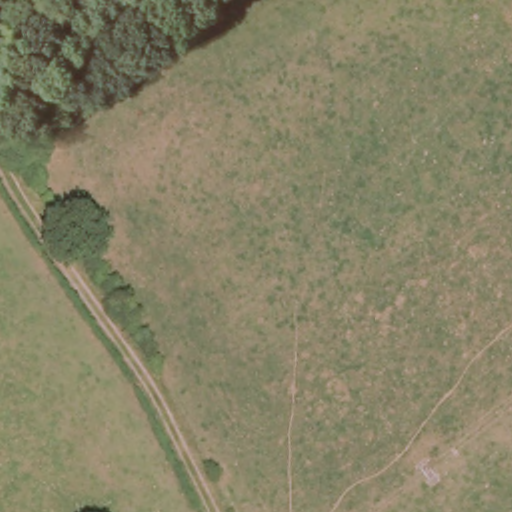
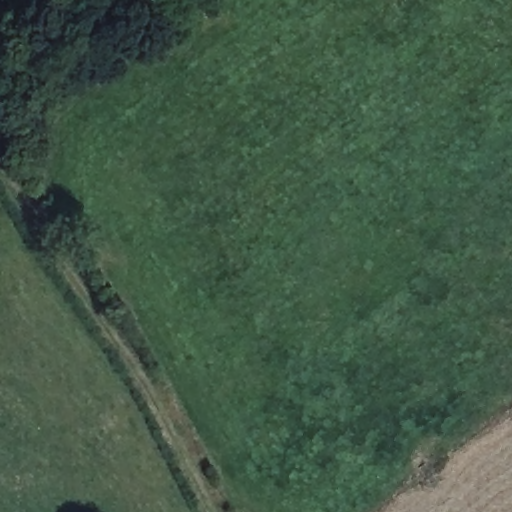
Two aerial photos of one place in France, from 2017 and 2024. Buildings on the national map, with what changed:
[]

